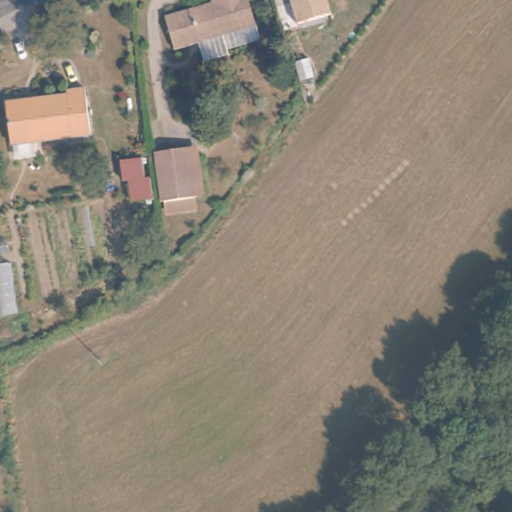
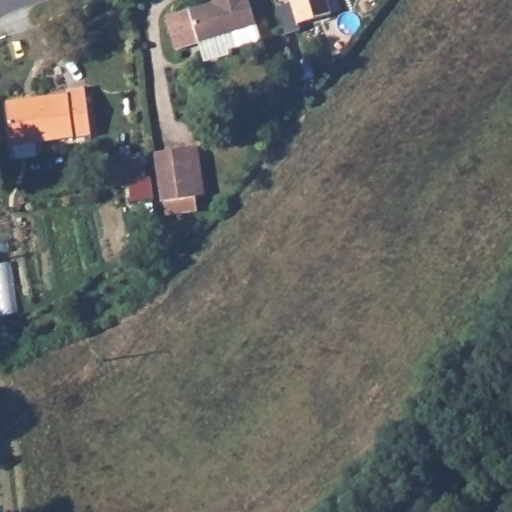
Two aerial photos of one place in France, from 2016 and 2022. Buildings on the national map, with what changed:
unchanged [(259,25),(177,50),(168,20),(215,5),(213,0),(252,0),(259,25)]
unchanged [(300,35),(285,39),(276,8),(292,3),(291,0),(328,0),(334,16),(298,25),(300,35)]
unchanged [(66,98),(66,93),(84,91),(89,139),(10,147),(6,104),(66,98)]
unchanged [(194,157),(200,205),(166,209),(160,161),(194,157)]
unchanged [(152,177),(156,196),(135,200),(133,181),(152,177)]

